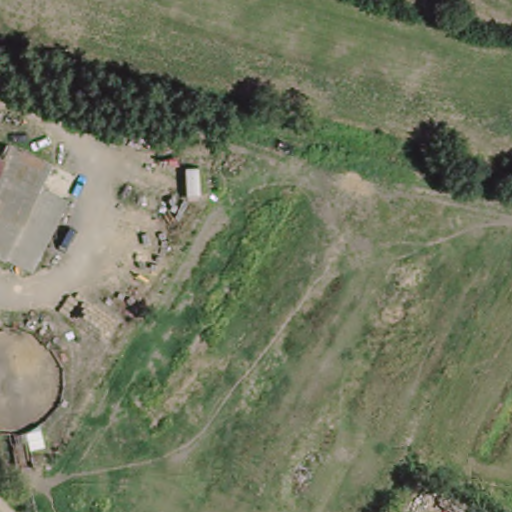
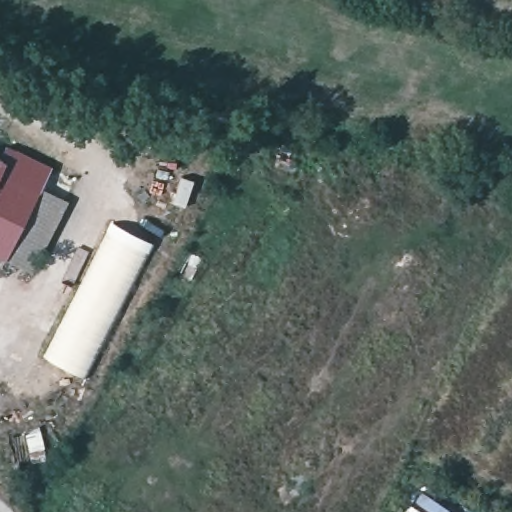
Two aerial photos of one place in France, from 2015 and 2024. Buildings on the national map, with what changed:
unchanged [(11,145),(54,166),(8,263),(0,260),(0,157),(5,160),(11,145)]
unchanged [(70,201),(35,272),(10,260),(44,188),(70,201)]
new [(46,356),(115,224),(156,246),(87,377),(46,356)]

